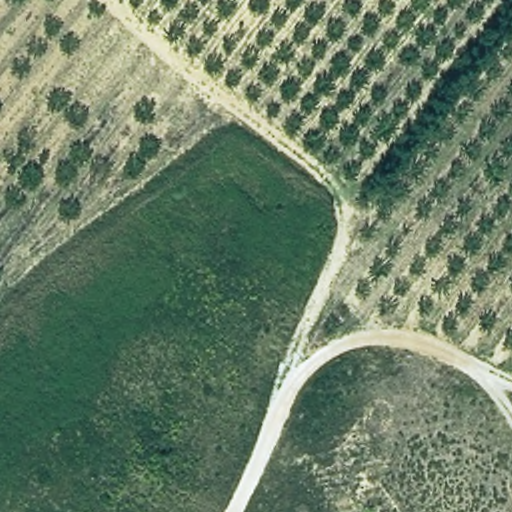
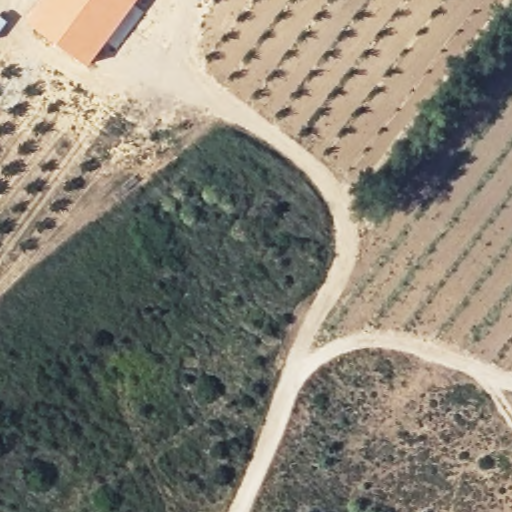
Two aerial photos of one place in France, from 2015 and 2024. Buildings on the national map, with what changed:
new [(135,0),(85,66),(22,21),(38,0),(135,0)]

